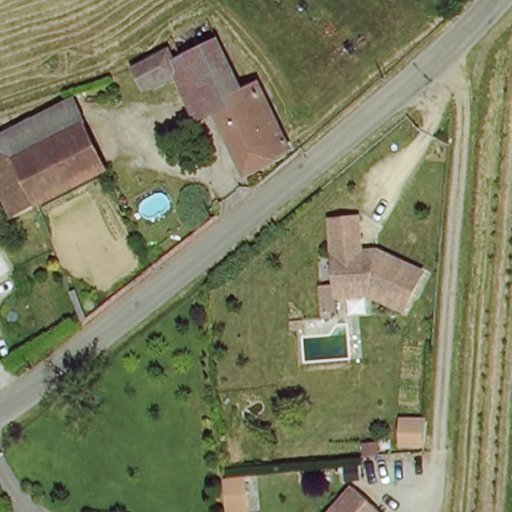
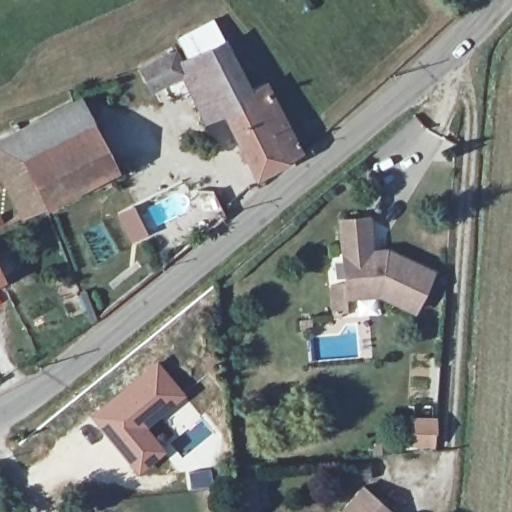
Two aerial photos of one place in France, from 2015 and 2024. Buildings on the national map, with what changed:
unchanged [(253,87),(221,107),(226,116),(214,123),(181,66),(225,41),(253,87)]
unchanged [(181,66),(149,85),(141,71),(173,53),(181,66)]
unchanged [(226,116),(221,107),(253,87),(264,82),(306,147),(266,181),(226,116)]
unchanged [(23,222),(0,181),(0,146),(79,103),(115,172),(45,211),(23,222)]
unchanged [(433,276),(414,315),(379,299),(379,296),(346,298),(340,224),(368,222),(371,256),(387,255),(433,276)]
new [(156,359),(185,393),(171,405),(168,402),(144,421),(166,450),(136,474),(89,415),(156,359)]
new [(260,512),(241,512),(238,479),(257,478),(260,512)]
unchanged [(389,512),(346,512),(365,491),(389,512)]

